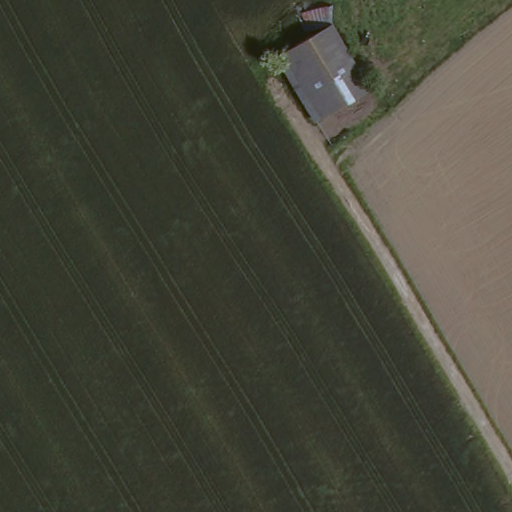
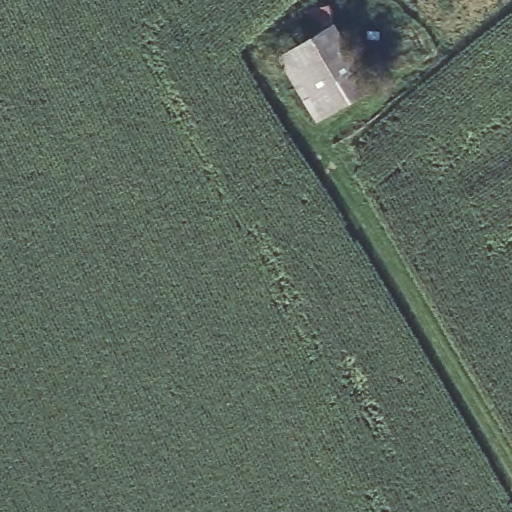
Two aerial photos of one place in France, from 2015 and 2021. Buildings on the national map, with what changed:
unchanged [(283,50),(316,29),(307,15),(329,0),(335,0),(385,81),(325,118),(283,50)]

